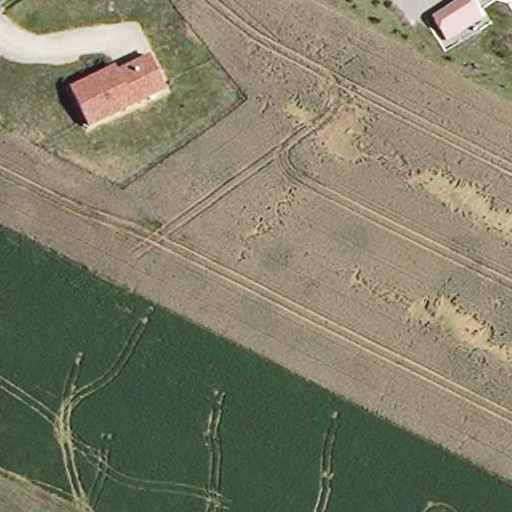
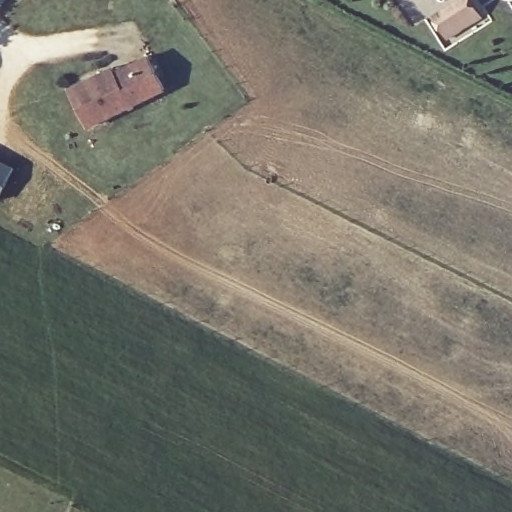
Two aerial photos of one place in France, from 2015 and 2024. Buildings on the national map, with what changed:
unchanged [(455,0),(472,0),(483,18),(447,41),(431,15),(455,0)]
unchanged [(71,86),(115,65),(117,71),(151,56),(166,91),(88,128),(71,86)]
new [(15,167),(0,196),(0,160),(15,167)]

